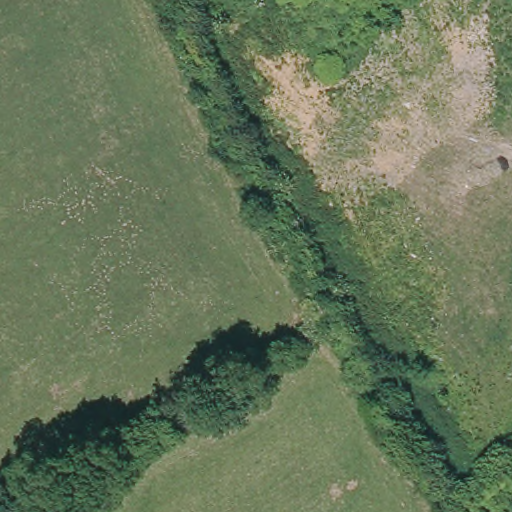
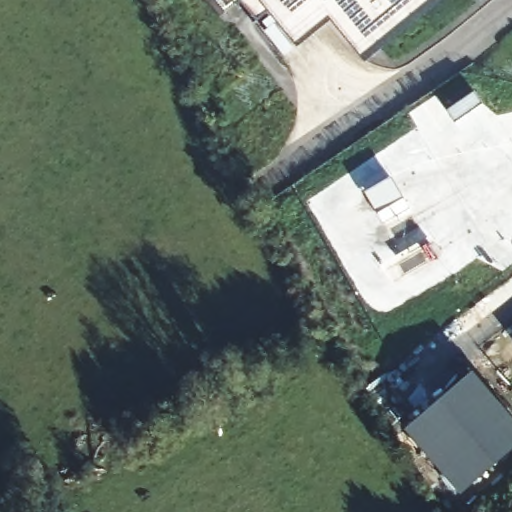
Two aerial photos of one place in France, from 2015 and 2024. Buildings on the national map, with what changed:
new [(362,57),(330,17),(295,45),(261,0),(433,0),(362,57)]
new [(512,456),(458,500),(405,435),(472,378),(512,423),(512,456)]

